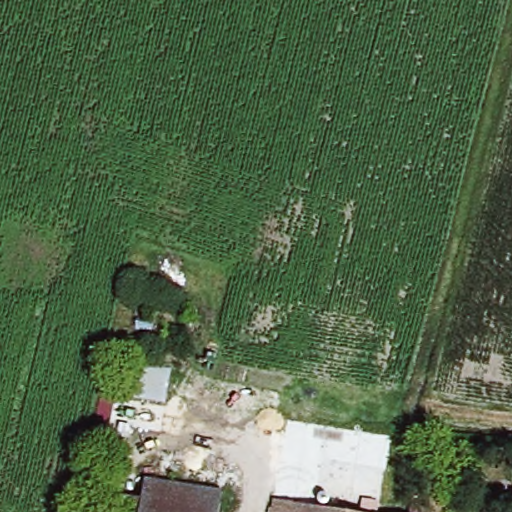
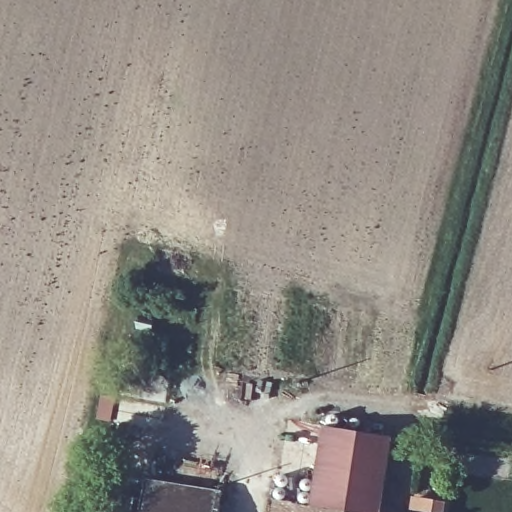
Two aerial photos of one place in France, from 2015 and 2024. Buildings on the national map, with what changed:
new [(395,437),(381,512),(347,512),(310,506),(324,425),(395,437)]
unchanged [(142,480),(218,492),(215,512),(137,512),(142,480)]
unchanged [(269,500),(288,502),(287,512),(268,512),(269,500)]
unchanged [(288,502),(346,512),(287,512),(288,502)]
unchanged [(434,512),(407,512),(409,502),(435,503),(434,512)]

